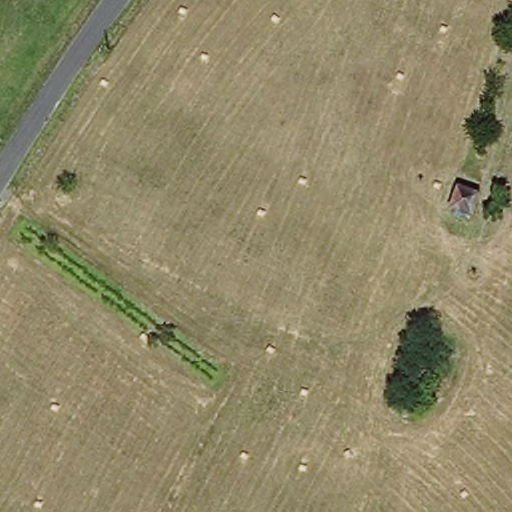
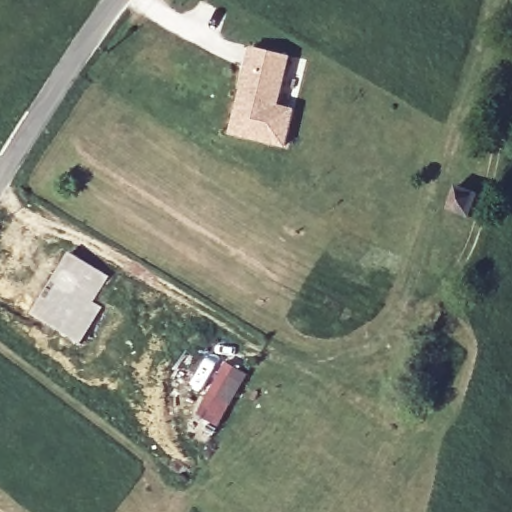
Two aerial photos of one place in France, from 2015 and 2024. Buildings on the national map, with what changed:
new [(248,81),(256,47),(292,56),(279,106),(295,110),(286,145),(235,132),(245,93),(248,81)]
unchanged [(490,200),(481,224),(461,216),(471,192),(490,200)]
new [(71,250),(112,275),(95,300),(105,305),(83,342),(34,313),(71,250)]

